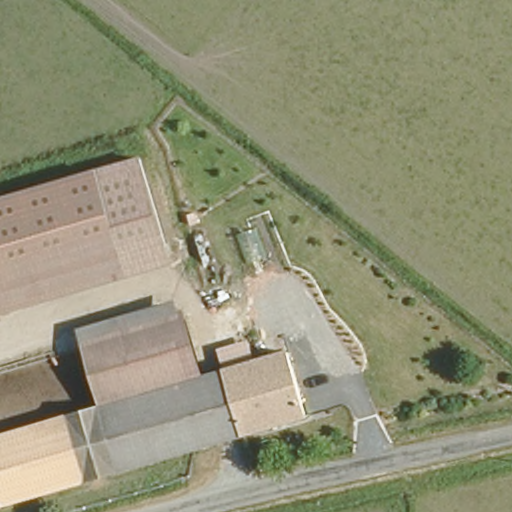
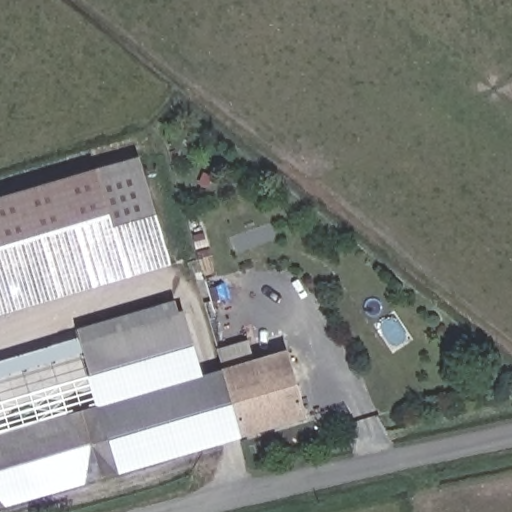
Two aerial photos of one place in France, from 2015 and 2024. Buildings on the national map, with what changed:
unchanged [(0,198),(138,156),(175,265),(0,316),(0,198)]
unchanged [(124,396),(98,404),(77,331),(179,302),(201,372),(124,396)]
new [(98,404),(0,437),(0,363),(79,340),(98,404)]
unchanged [(224,365),(289,343),(299,376),(308,372),(318,408),(243,431),(224,365)]
unchanged [(143,462),(124,396),(201,372),(224,365),(243,431),(143,462)]
unchanged [(0,508),(0,437),(98,404),(124,396),(143,462),(0,508)]

